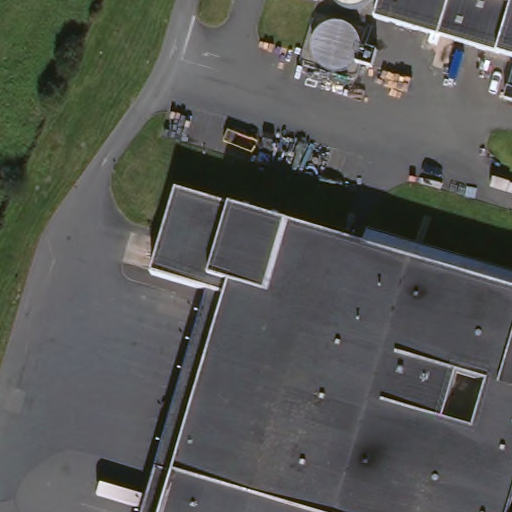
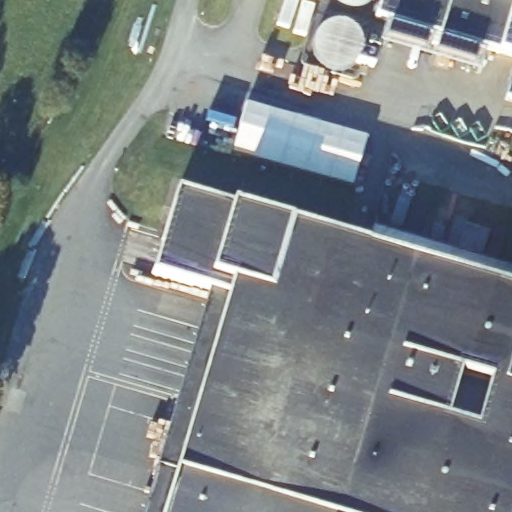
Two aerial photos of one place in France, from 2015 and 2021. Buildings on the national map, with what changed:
unchanged [(380,0),(512,0),(512,56),(375,17),(380,0)]
new [(365,137),(351,186),(232,152),(246,104),(365,137)]
unchanged [(191,424),(172,419),(178,400),(196,405),(229,295),(153,272),(163,238),(178,187),(367,242),(371,231),(512,273),(512,505),(510,512),(165,512),(191,424)]

